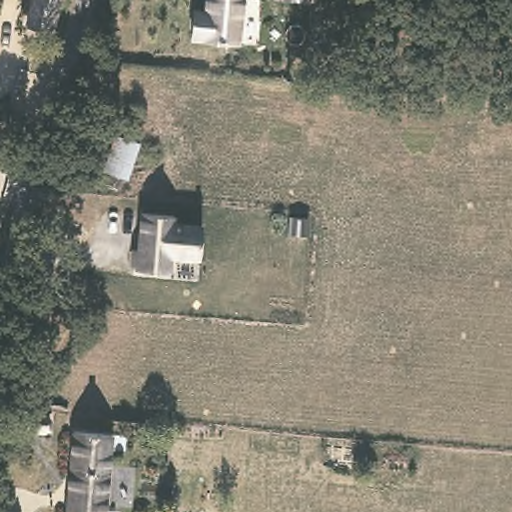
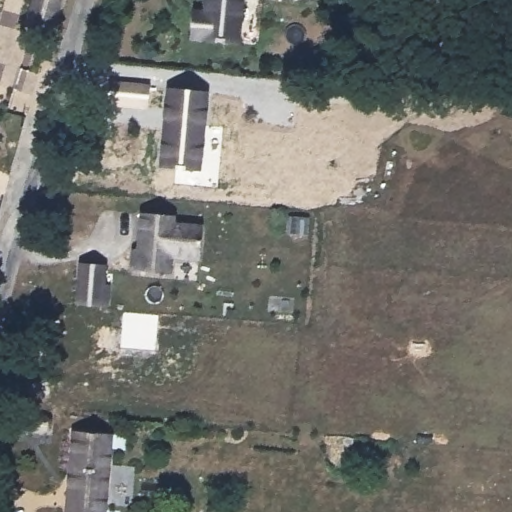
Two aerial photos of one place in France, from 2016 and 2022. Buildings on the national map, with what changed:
unchanged [(33,0),(62,0),(55,27),(27,21),(33,0)]
unchanged [(195,11),(206,12),(207,0),(243,0),(239,42),(204,40),(205,39),(192,37),(195,11)]
demolished [(181,34),(180,47),(156,45),(159,32),(181,34)]
new [(170,89),(207,92),(200,171),(164,167),(170,89)]
unchanged [(129,179),(101,171),(114,135),(142,142),(129,179)]
unchanged [(178,224),(205,226),(204,263),(173,261),(172,273),(130,270),(131,250),(137,250),(141,214),(176,217),(178,224)]
unchanged [(112,286),(110,310),(102,308),(75,307),(80,264),(107,266),(106,285),(112,286)]
unchanged [(107,457),(103,512),(66,512),(70,455),(72,431),(110,434),(107,457)]

